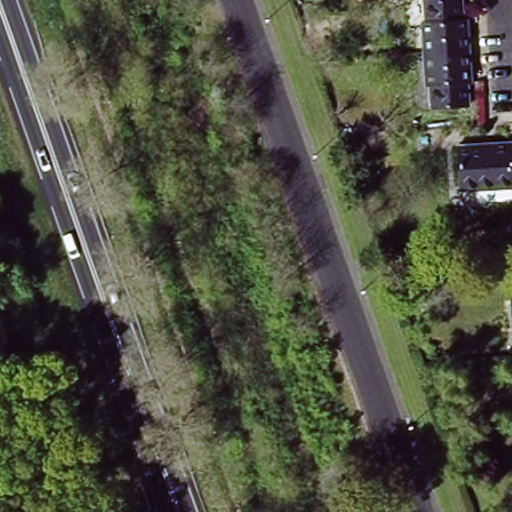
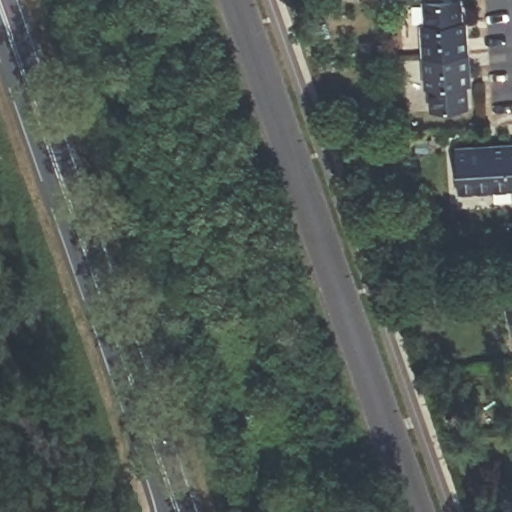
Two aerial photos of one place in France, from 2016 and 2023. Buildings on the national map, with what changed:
unchanged [(424,27),(430,27),(428,3),(465,1),(467,40),(472,40),(473,56),(427,59),(424,27)]
unchanged [(473,56),(474,71),(469,71),(471,109),(436,111),(434,89),(428,89),(427,59),(473,56)]
unchanged [(458,148),(512,145),(512,188),(460,192),(458,148)]

